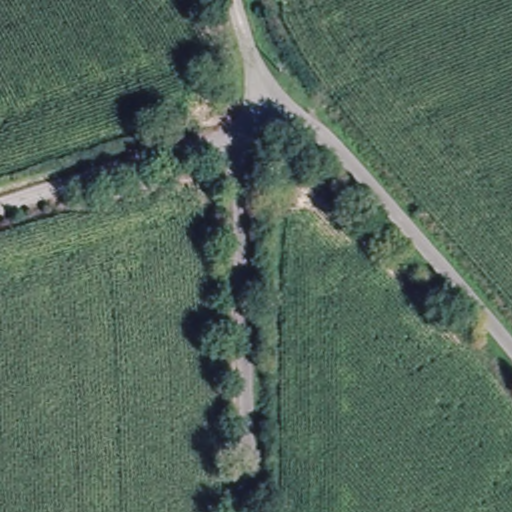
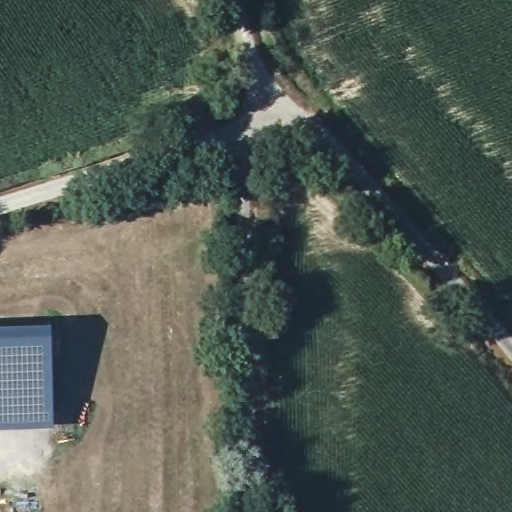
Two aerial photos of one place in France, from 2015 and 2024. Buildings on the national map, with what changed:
new [(59,324),(63,405),(0,408),(0,327),(59,324)]
new [(63,405),(64,428),(0,431),(0,408),(63,405)]

